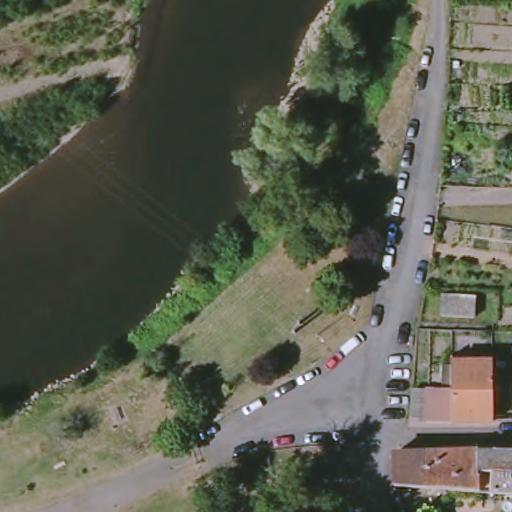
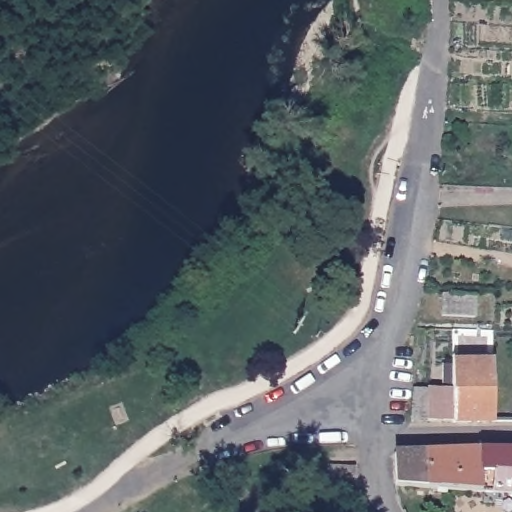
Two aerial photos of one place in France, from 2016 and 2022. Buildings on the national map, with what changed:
unchanged [(476,296),(475,318),(442,316),(443,294),(476,296)]
unchanged [(448,356),(488,357),(490,417),(448,417),(423,417),(406,417),(409,384),(425,385),(448,387),(448,356)]
unchanged [(422,484),(422,449),(476,447),(476,487),(445,486),(422,484)]
unchanged [(476,447),(512,447),(512,490),(479,489),(476,487),(476,447)]
unchanged [(396,482),(390,482),(390,449),(422,449),(422,484),(396,482)]
unchanged [(340,473),(357,471),(358,486),(350,486),(331,488),(330,473),(340,473)]
unchanged [(324,473),(325,484),(303,486),(302,474),(324,473)]

